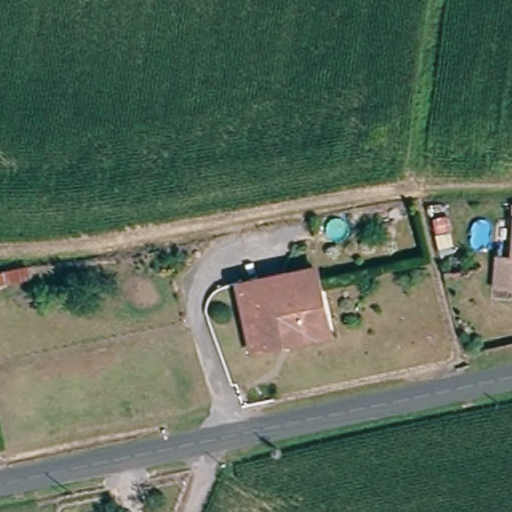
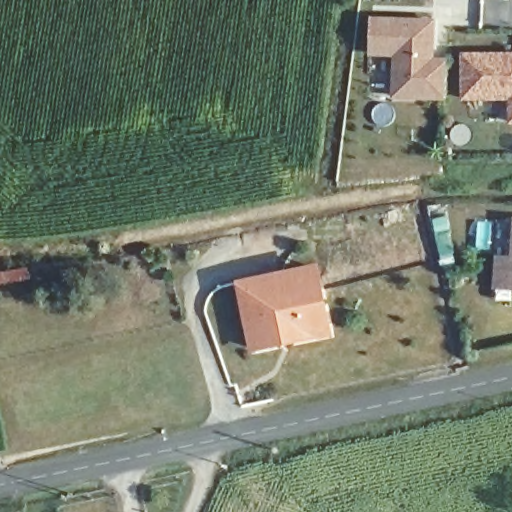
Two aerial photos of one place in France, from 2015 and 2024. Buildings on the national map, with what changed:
new [(381,21),(441,24),(440,62),(455,62),(454,100),(402,97),(404,55),(380,55),(381,21)]
new [(472,58),(512,58),(512,124),(495,124),(495,100),(472,100),(472,58)]
unchanged [(487,261),(505,261),(507,225),(512,225),(512,292),(486,290),(487,261)]
unchanged [(251,353),(241,298),(239,289),(317,272),(319,281),(330,336),(304,342),(270,349),(251,353)]

